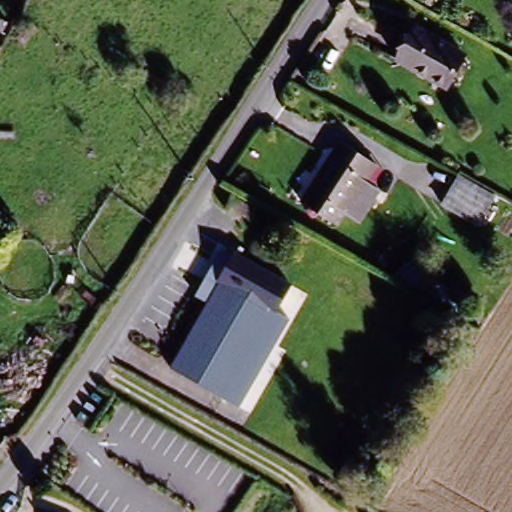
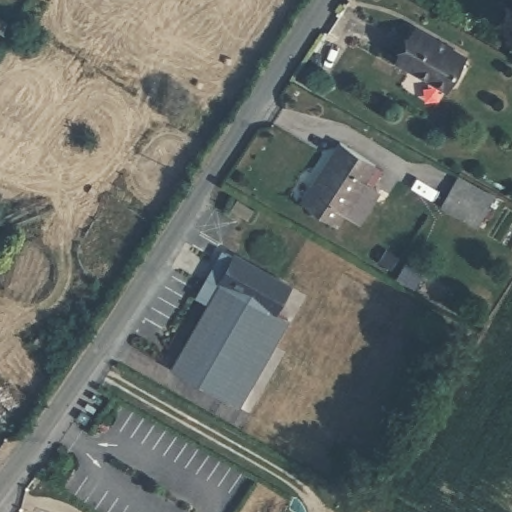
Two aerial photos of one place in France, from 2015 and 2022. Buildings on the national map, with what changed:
unchanged [(10,21),(3,33),(0,31),(0,15),(10,21)]
unchanged [(444,87),(396,60),(413,28),(462,54),(444,87)]
unchanged [(333,218),(298,196),(334,139),(368,161),(359,177),(373,186),(354,216),(339,206),(333,218)]
unchanged [(458,193),(491,215),(480,233),(446,210),(458,193)]
unchanged [(234,402),(168,367),(218,277),(283,313),(234,402)]

